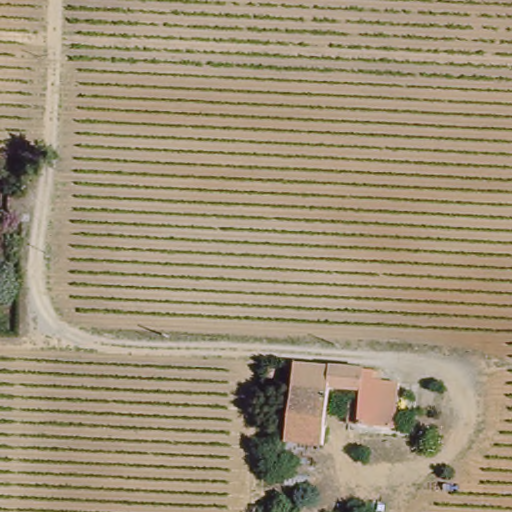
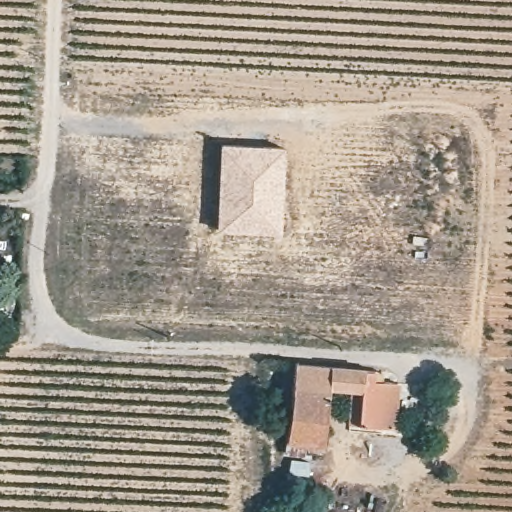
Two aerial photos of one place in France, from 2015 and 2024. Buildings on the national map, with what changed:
new [(218,142),(284,146),(281,234),(215,230),(218,142)]
unchanged [(298,361),(367,368),(366,378),(366,386),(333,383),(326,441),(289,437),(298,361)]
unchanged [(388,428),(362,425),(366,386),(366,378),(392,381),(388,428)]

